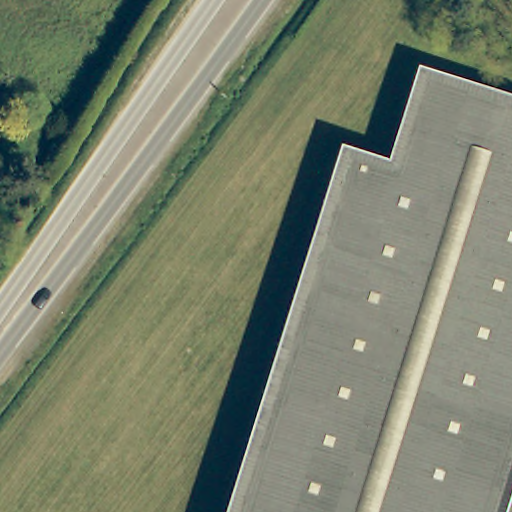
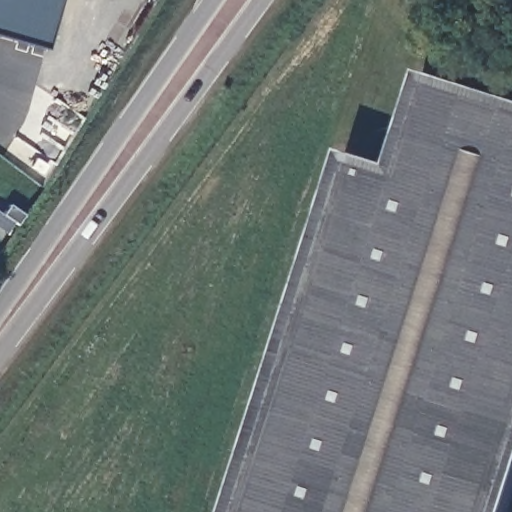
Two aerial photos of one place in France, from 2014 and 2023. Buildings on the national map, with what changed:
new [(42,50),(0,37),(0,0),(57,0),(42,50)]
unchanged [(386,160),(416,69),(512,99),(512,484),(503,512),(222,512),(336,147),(386,160)]
new [(5,216),(12,206),(27,216),(20,226),(16,224),(8,235),(0,229),(0,213),(5,216)]

